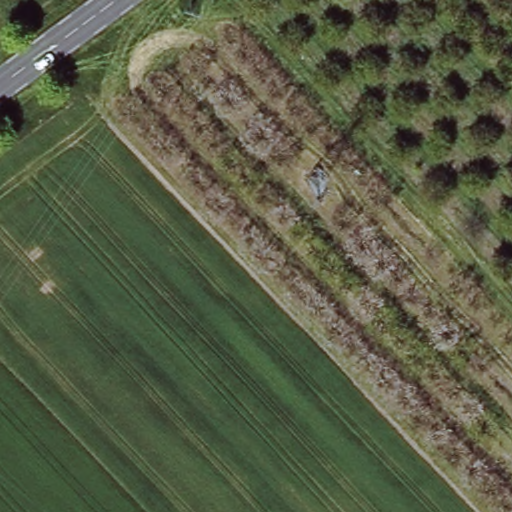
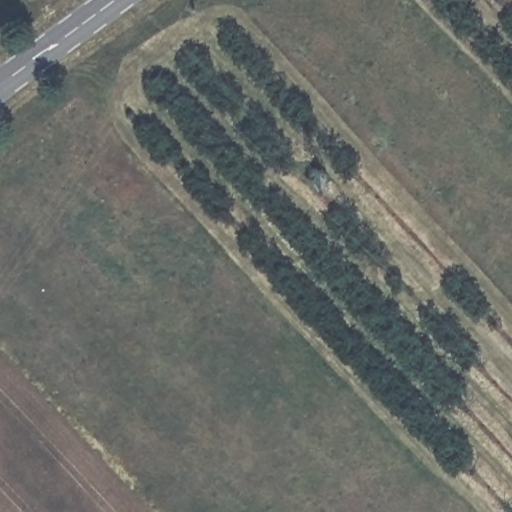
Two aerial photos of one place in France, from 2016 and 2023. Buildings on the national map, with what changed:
[]

